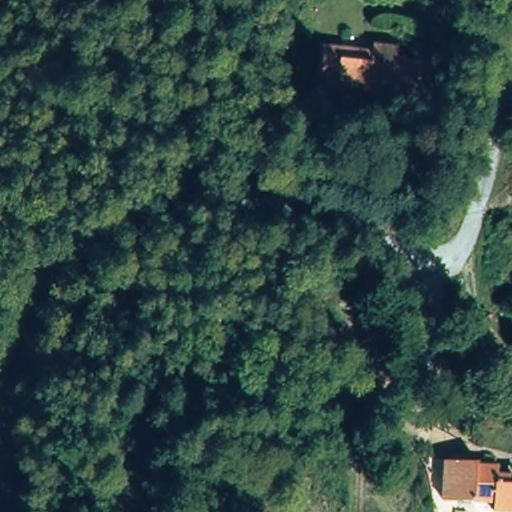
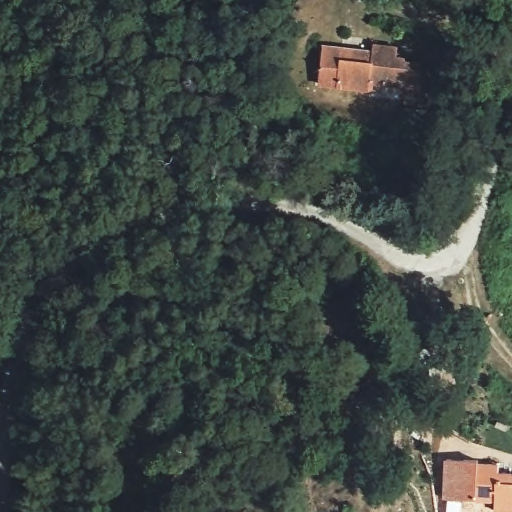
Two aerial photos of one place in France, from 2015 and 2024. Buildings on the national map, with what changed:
unchanged [(402,51),(401,65),(427,68),(423,95),(376,88),(374,97),(323,87),(329,51),(377,56),(377,46),(402,51)]
unchanged [(500,512),(499,507),(447,503),(450,462),(481,462),(481,469),(506,470),(506,480),(512,481),(512,512),(500,512)]

